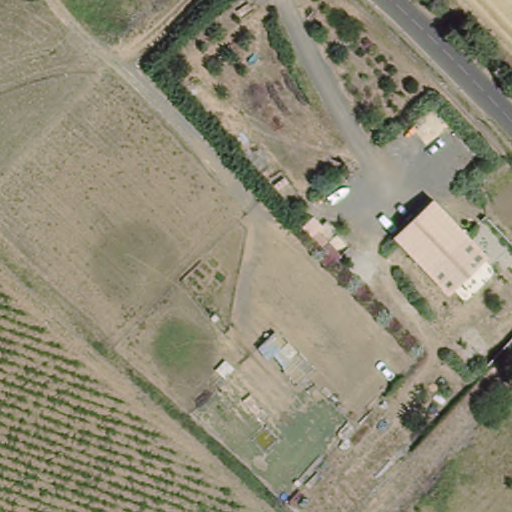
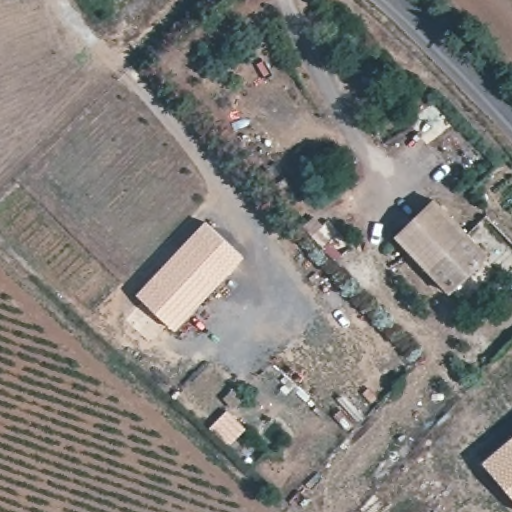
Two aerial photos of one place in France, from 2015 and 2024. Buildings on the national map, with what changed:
unchanged [(440,194),(498,253),(454,293),(399,234),(440,194)]
new [(245,257),(176,331),(137,294),(205,220),(245,257)]
new [(288,343),(290,341),(299,352),(302,351),(337,388),(327,397),(324,394),(321,396),(308,384),(303,389),(284,371),(287,367),(275,356),(270,361),(259,350),(277,332),(288,343)]
new [(484,462),(512,438),(512,495),(484,462)]

